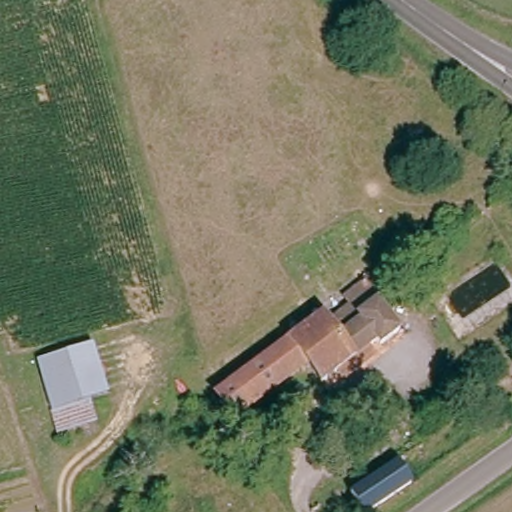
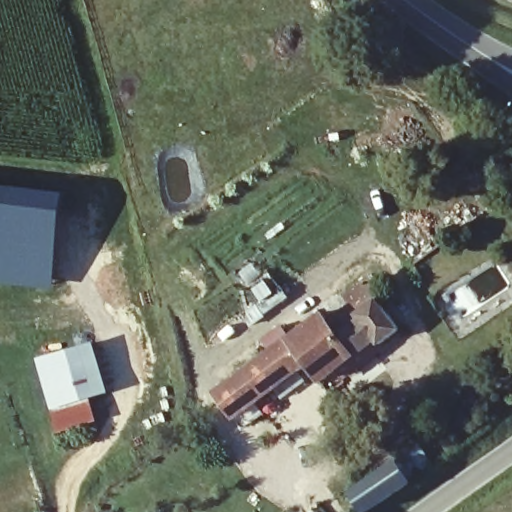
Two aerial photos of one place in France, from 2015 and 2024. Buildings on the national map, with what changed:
new [(50,291),(0,284),(0,184),(65,192),(50,291)]
unchanged [(329,327),(351,310),(344,301),(368,283),(384,305),(382,307),(402,333),(382,348),(379,344),(326,384),(312,366),(235,425),(215,399),(322,318),(329,327)]
unchanged [(44,364),(98,349),(111,398),(58,413),(44,364)]
unchanged [(118,421),(64,436),(58,413),(111,398),(118,421)]
unchanged [(400,465),(416,487),(380,512),(363,512),(353,498),(400,465)]

